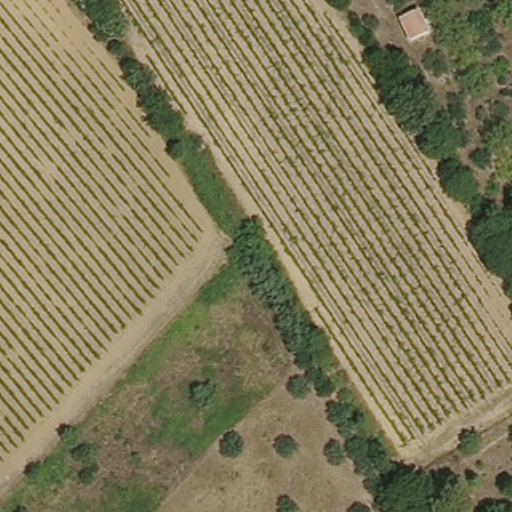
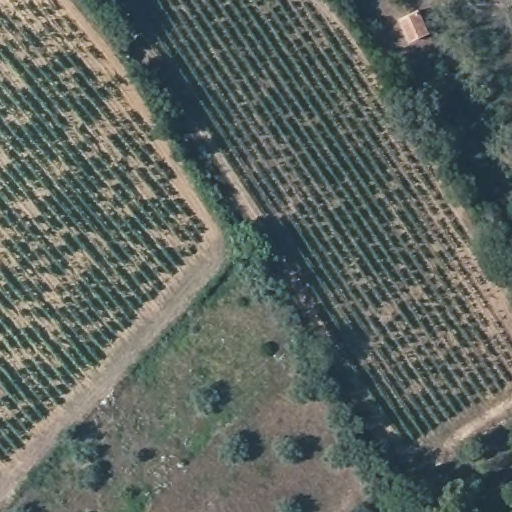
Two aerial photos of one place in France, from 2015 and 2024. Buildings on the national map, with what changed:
unchanged [(427,37),(408,45),(399,24),(418,16),(427,37)]

